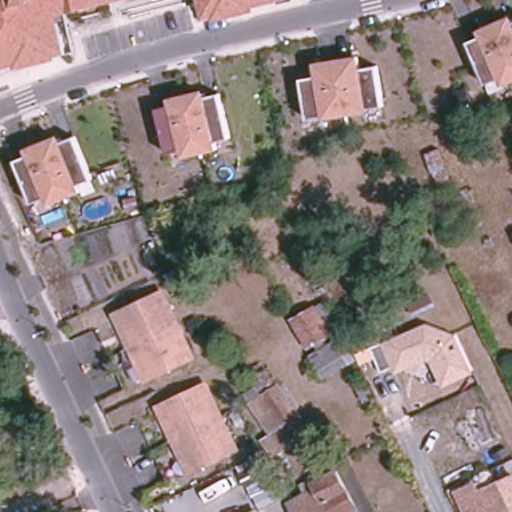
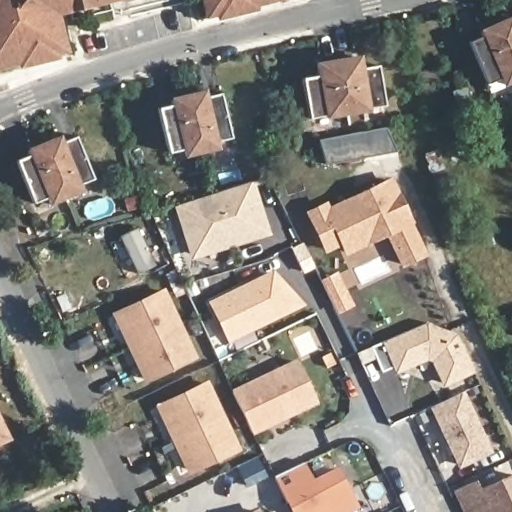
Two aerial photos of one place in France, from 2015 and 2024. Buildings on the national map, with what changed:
unchanged [(58,15),(66,54),(58,56),(59,60),(17,69),(16,66),(0,69),(0,0),(120,0),(58,15)]
unchanged [(256,6),(257,11),(215,21),(214,16),(205,19),(200,0),(282,0),(256,6)]
unchanged [(503,87),(500,80),(487,85),(469,42),(482,37),(479,30),(512,16),(512,82),(503,87)]
unchanged [(385,109),(309,121),(302,79),(317,76),(316,62),(360,55),(362,68),(378,66),(385,109)]
unchanged [(156,110),(170,106),(168,97),(205,88),(207,96),(221,92),(230,137),(217,141),(220,150),(186,157),(184,149),(167,154),(156,110)]
new [(387,127),(393,152),(326,166),(321,142),(387,127)]
unchanged [(81,184),(83,192),(48,205),(44,197),(34,202),(18,160),(29,155),(26,147),(61,135),(64,142),(80,136),(96,178),(81,184)]
unchanged [(440,185),(427,155),(440,148),(454,179),(440,185)]
new [(340,247),(324,255),(304,212),(328,201),(330,205),(391,177),(428,256),(400,269),(385,237),(344,257),(340,247)]
new [(246,184),(267,233),(228,249),(228,246),(192,261),(169,205),(246,184)]
new [(354,307),(337,315),(320,281),(338,272),(354,307)]
new [(229,339),(212,303),(272,275),(301,305),(229,339)]
unchanged [(177,356),(140,373),(128,348),(132,346),(127,335),(123,337),(121,333),(110,312),(158,289),(188,350),(177,356)]
demolished [(431,301),(435,309),(423,315),(419,307),(431,301)]
demolished [(310,356),(316,352),(312,344),(308,346),(294,320),(323,304),(337,330),(323,338),(327,347),(340,339),(352,361),(344,365),(322,377),(310,356)]
unchanged [(445,387),(433,360),(397,376),(395,368),(385,372),(379,358),(361,367),(360,362),(356,355),(429,323),(458,336),(475,372),(445,387)]
new [(314,402),(251,432),(232,392),(295,362),(314,402)]
demolished [(381,388),(407,375),(415,390),(389,403),(381,388)]
unchanged [(189,466),(176,441),(181,439),(175,428),(171,431),(159,405),(196,387),(206,382),(217,405),(236,443),(189,466)]
demolished [(306,433),(279,450),(244,392),(256,385),(261,393),(276,383),(306,433)]
demolished [(371,383),(378,396),(369,401),(362,387),(371,383)]
demolished [(470,422),(451,431),(441,409),(459,400),(474,391),(497,441),(482,447),(470,422)]
new [(489,452),(459,466),(431,407),(461,393),(489,452)]
unchanged [(0,442),(0,433),(4,440),(0,442)]
demolished [(462,457),(470,453),(474,461),(466,465),(462,457)]
unchanged [(336,470),(355,508),(347,512),(297,512),(293,505),(279,477),(302,464),(312,481),(336,470)]
unchanged [(486,512),(478,491),(512,477),(512,512),(486,512)]
unchanged [(474,481),(478,491),(486,512),(461,512),(452,488),(474,481)]
demolished [(241,512),(249,508),(251,512),(241,512)]
unchanged [(252,512),(259,508),(261,512),(252,512)]

